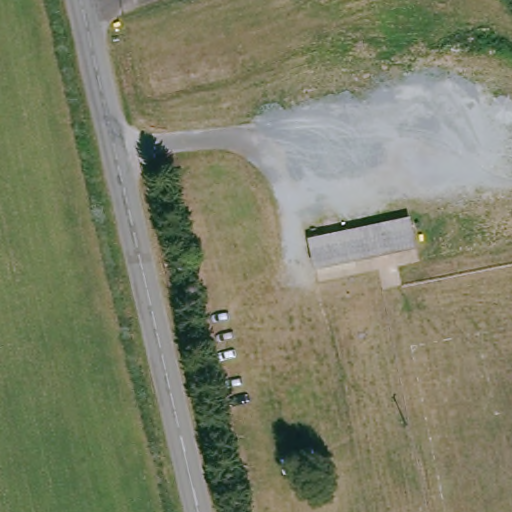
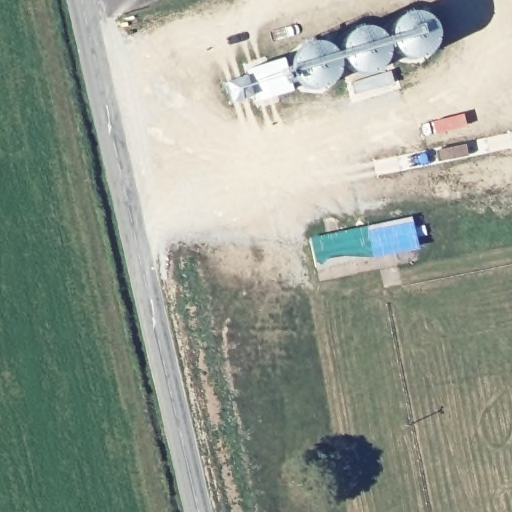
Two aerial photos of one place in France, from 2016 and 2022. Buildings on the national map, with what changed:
new [(426,21),(431,25),(434,31),(435,40),(435,41),(435,46),(430,55),(325,89),(312,89),(301,84),(295,77),(292,72),(291,66),(292,60),(296,53),(302,47),(416,14),(426,21)]
new [(252,103),(249,97),(231,105),(225,82),(245,79),(242,69),(281,57),(291,91),(252,103)]
unchanged [(410,245),(308,267),(303,243),(403,219),(410,245)]

